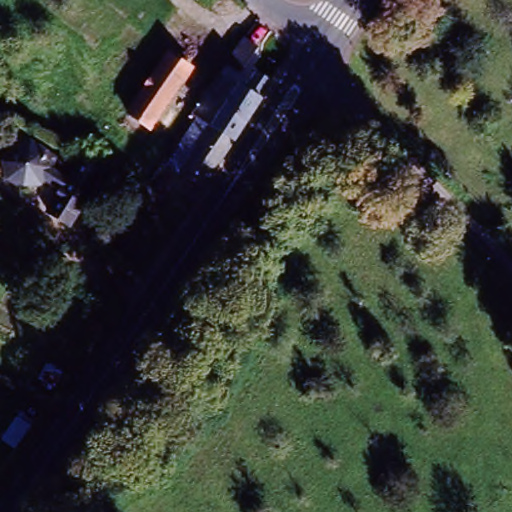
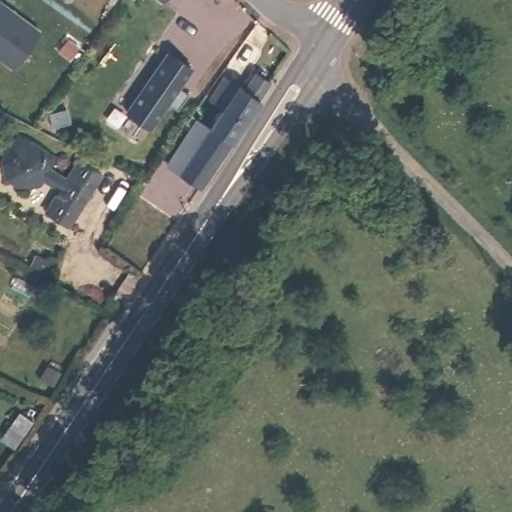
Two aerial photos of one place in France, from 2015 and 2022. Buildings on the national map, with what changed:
new [(39,30),(12,67),(0,58),(0,2),(39,30)]
unchanged [(241,33),(254,41),(237,67),(225,58),(241,33)]
unchanged [(173,82),(138,138),(117,124),(152,69),(173,82)]
unchanged [(214,74),(239,92),(251,73),(268,85),(229,143),(195,120),(187,115),(214,74)]
unchanged [(164,165),(195,120),(229,143),(198,188),(164,165)]
unchanged [(20,191),(3,180),(0,169),(0,159),(14,134),(43,151),(48,165),(69,177),(81,156),(104,169),(71,229),(47,216),(60,192),(38,181),(35,187),(20,191)]
unchanged [(94,326),(107,335),(97,350),(84,341),(94,326)]
unchanged [(7,445),(26,420),(37,427),(19,453),(7,445)]

